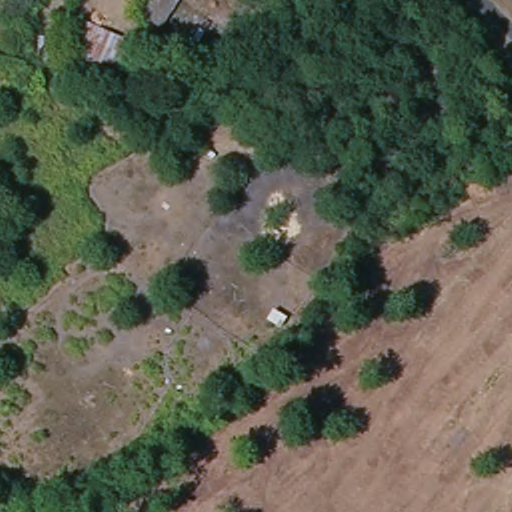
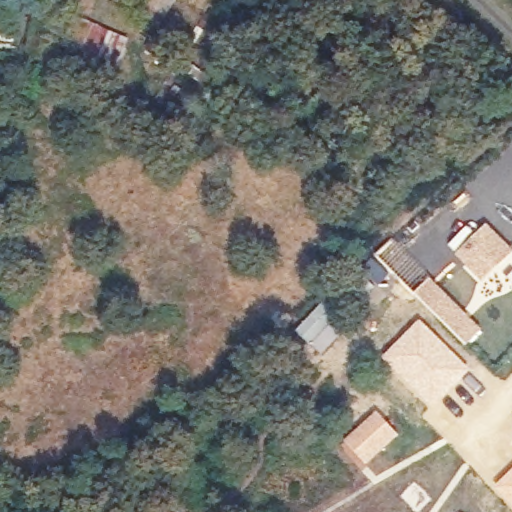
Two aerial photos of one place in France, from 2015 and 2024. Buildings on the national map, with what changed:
unchanged [(176,0),(158,26),(140,16),(149,0),(176,0)]
unchanged [(77,15),(144,51),(127,75),(113,69),(103,81),(75,66),(82,50),(66,43),(77,15)]
new [(512,258),(484,283),(458,255),(488,226),(512,252),(512,258)]
new [(432,278),(484,332),(466,348),(415,295),(432,278)]
new [(325,302),(348,325),(321,355),(295,332),(325,302)]
new [(419,320),(469,370),(431,408),(381,358),(419,320)]
new [(394,430),(400,436),(367,467),(344,442),(369,419),(381,431),(394,430)]
new [(512,504),(495,486),(512,470),(512,504)]

